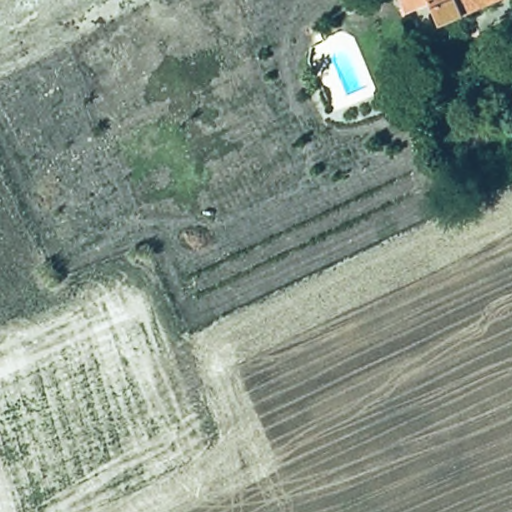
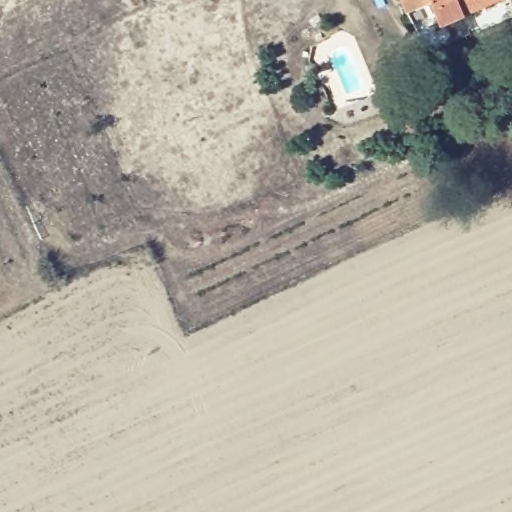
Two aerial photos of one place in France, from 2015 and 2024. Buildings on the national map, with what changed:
unchanged [(399,0),(490,0),(434,25),(423,3),(403,11),(399,0)]

